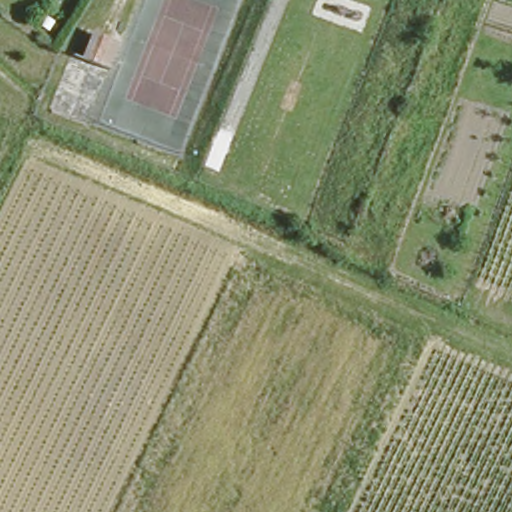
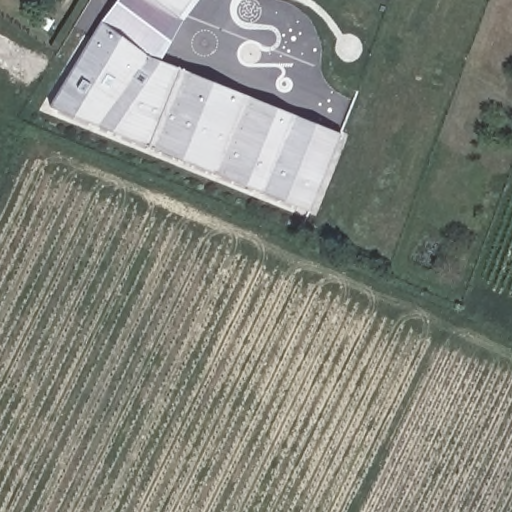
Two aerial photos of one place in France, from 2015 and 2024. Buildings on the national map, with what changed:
new [(117,0),(195,0),(183,17),(155,64),(342,136),(312,214),(51,106),(101,24),(117,0)]
demolished [(96,65),(81,59),(91,34),(106,40),(96,65)]

